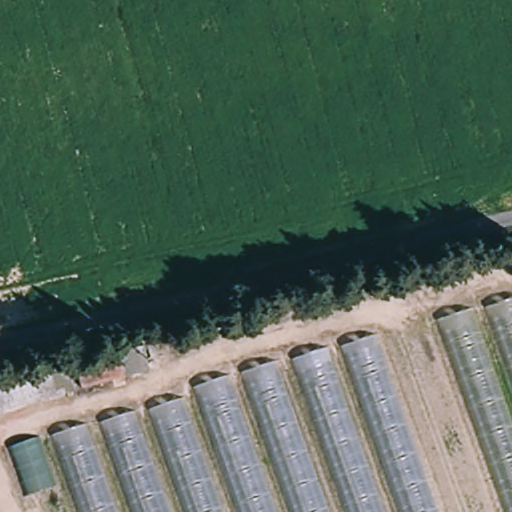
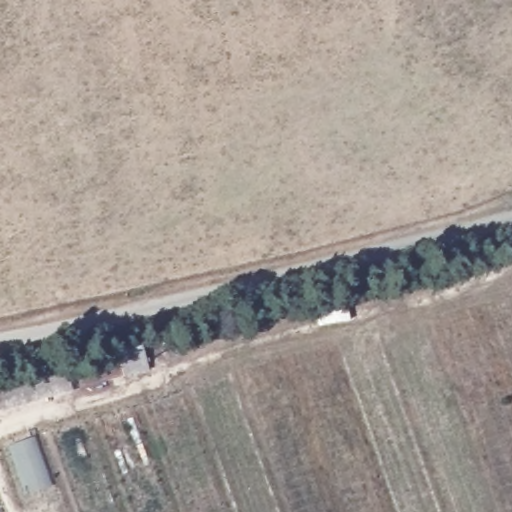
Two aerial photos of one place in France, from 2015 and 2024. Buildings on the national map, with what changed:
demolished [(23,512),(1,451),(512,294),(512,512),(23,512)]
unchanged [(149,378),(81,395),(75,370),(144,353),(149,378)]
unchanged [(0,418),(0,389),(66,372),(73,399),(0,418)]
new [(54,487),(28,496),(11,446),(36,437),(54,487)]

